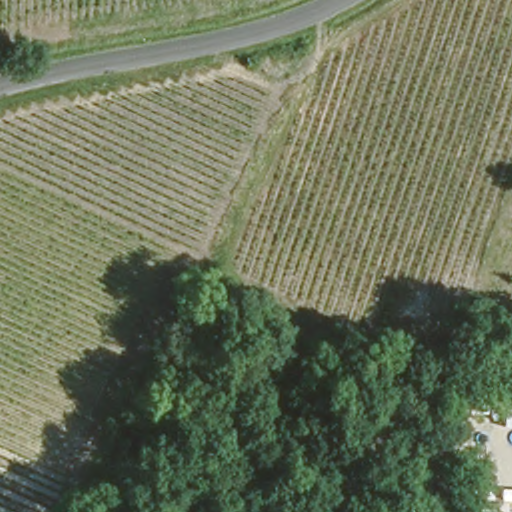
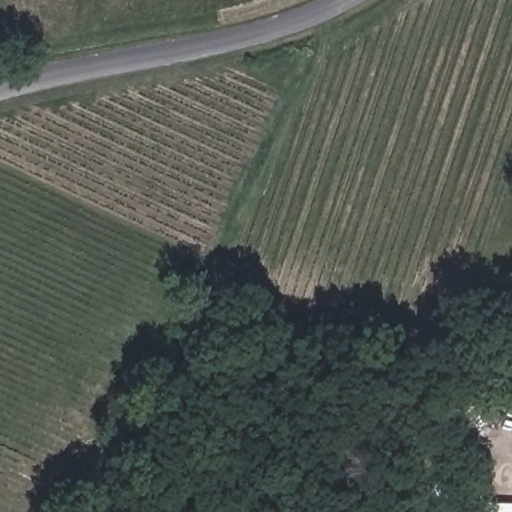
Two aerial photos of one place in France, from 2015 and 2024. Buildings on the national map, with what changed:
[]

